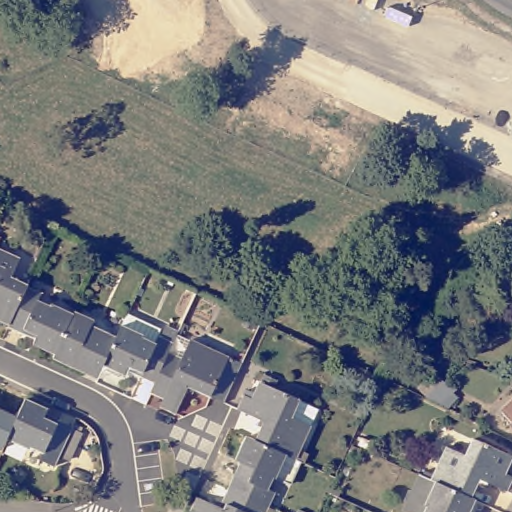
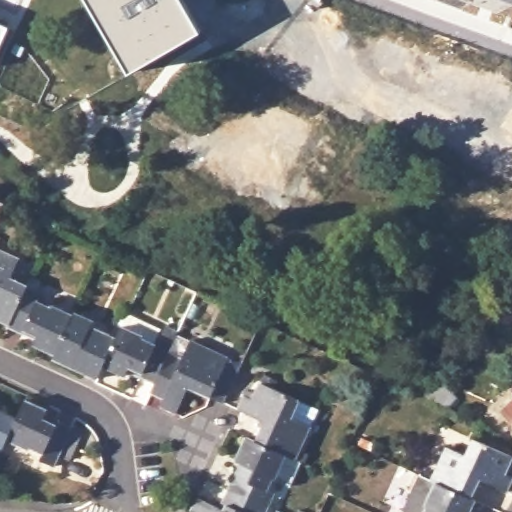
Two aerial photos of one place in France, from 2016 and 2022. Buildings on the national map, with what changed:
new [(201,31),(130,73),(87,0),(183,0),(201,31)]
new [(7,27),(0,43),(0,25),(7,27)]
unchanged [(0,319),(0,247),(25,258),(16,276),(32,284),(30,286),(13,324),(0,319)]
unchanged [(37,343),(41,335),(27,328),(25,332),(12,327),(13,324),(30,286),(44,293),(42,300),(54,306),(56,304),(77,313),(59,353),(37,343)]
unchanged [(77,366),(78,362),(59,353),(77,313),(78,311),(98,320),(96,324),(120,335),(107,363),(100,377),(77,366)]
unchanged [(146,372),(135,366),(131,373),(107,363),(120,335),(125,325),(131,313),(165,329),(162,335),(177,342),(158,381),(145,375),(146,372)]
unchanged [(193,387),(180,412),(164,405),(167,397),(154,391),(158,381),(177,342),(181,333),(195,340),(196,339),(247,362),(227,402),(214,397),(193,387)]
unchanged [(267,421),(244,410),(241,409),(248,395),(255,398),(262,381),(322,408),(299,458),(259,440),(267,421)]
unchanged [(0,437),(0,398),(4,391),(29,401),(11,440),(10,441),(0,437)]
unchanged [(52,407),(48,417),(62,423),(63,421),(76,427),(58,466),(46,460),(47,454),(33,447),(32,449),(11,440),(29,401),(30,398),(52,407)]
unchanged [(512,398),(512,424),(500,410),(512,398)]
unchanged [(296,485),(279,476),(273,490),(278,491),(272,506),(231,488),(238,473),(241,475),(246,465),(239,460),(249,435),(259,440),(299,458),(307,461),(296,485)]
unchanged [(469,455),(477,438),(512,454),(512,468),(510,472),(512,473),(512,488),(511,491),(485,480),(477,498),(438,480),(435,479),(450,446),(469,455)]
unchanged [(428,505),(438,480),(477,498),(480,500),(474,512),(427,512),(430,505),(428,505)]
unchanged [(201,496),(227,507),(229,503),(226,500),(231,488),(272,506),(278,509),(277,512),(197,512),(195,510),(201,496)]

